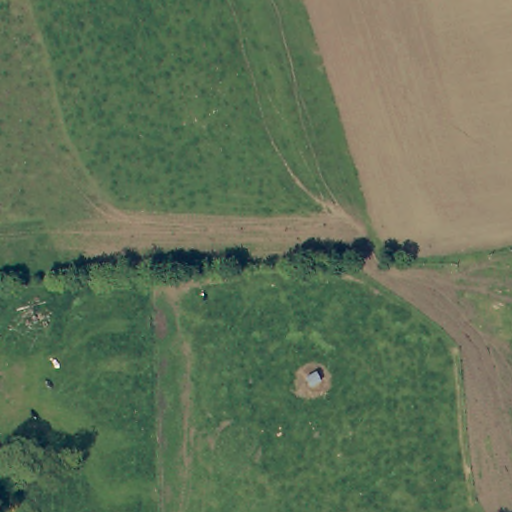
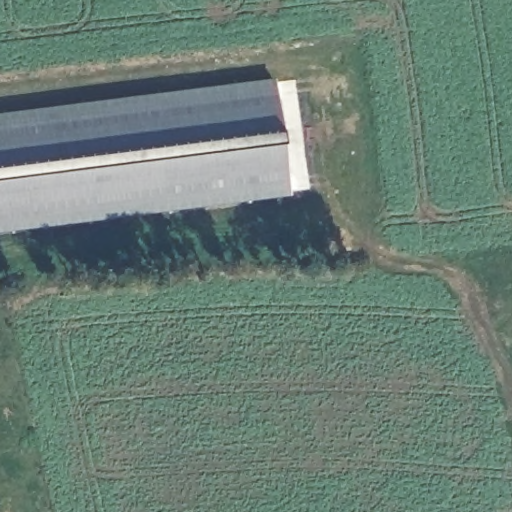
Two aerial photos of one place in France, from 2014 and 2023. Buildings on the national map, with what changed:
new [(0,233),(0,113),(273,79),(290,196),(0,233)]

